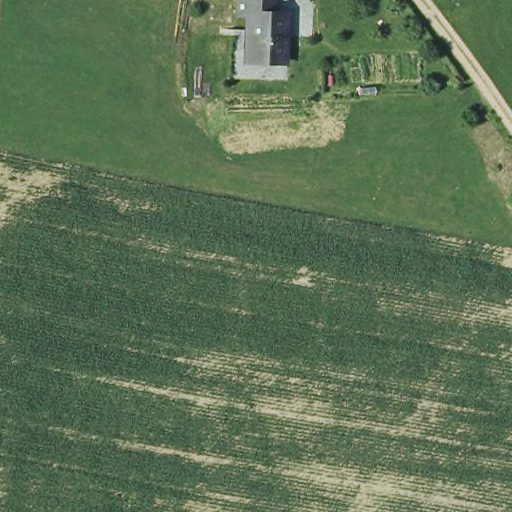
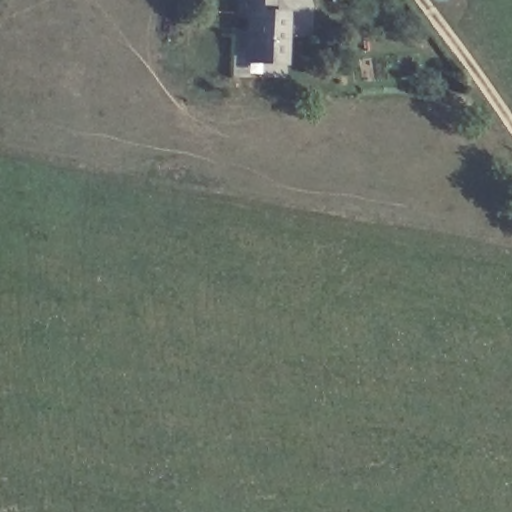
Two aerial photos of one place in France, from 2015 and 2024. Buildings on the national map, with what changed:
unchanged [(276,65),(244,64),(245,18),(235,17),(237,3),(266,6),(264,20),(279,23),(276,65)]

